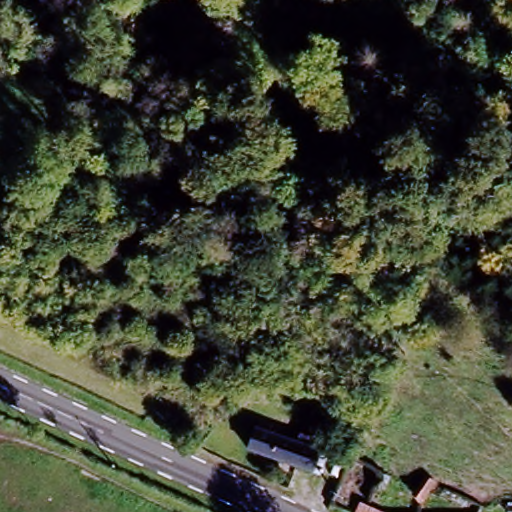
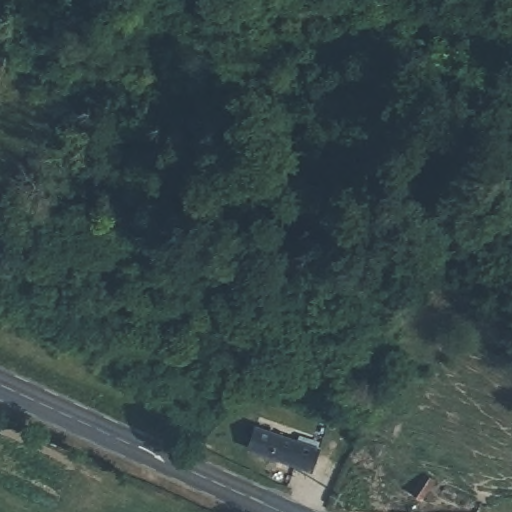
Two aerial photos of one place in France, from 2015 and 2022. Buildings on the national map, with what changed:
unchanged [(209,440),(194,433),(204,411),(218,417),(209,440)]
unchanged [(258,427),(321,451),(312,473),(251,448),(258,427)]
unchanged [(411,489),(424,466),(433,472),(419,495),(411,489)]
unchanged [(361,512),(353,508),(360,492),(380,502),(375,512),(361,512)]

